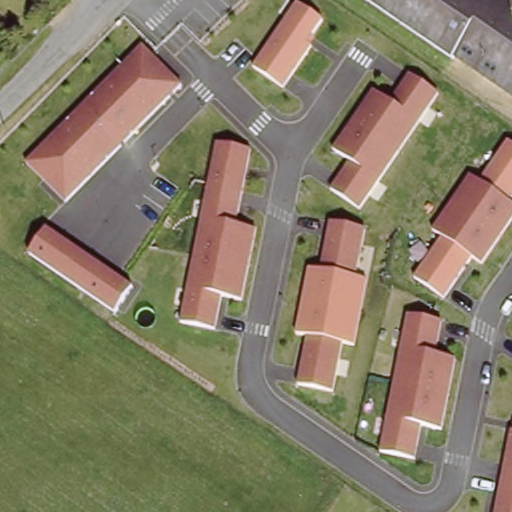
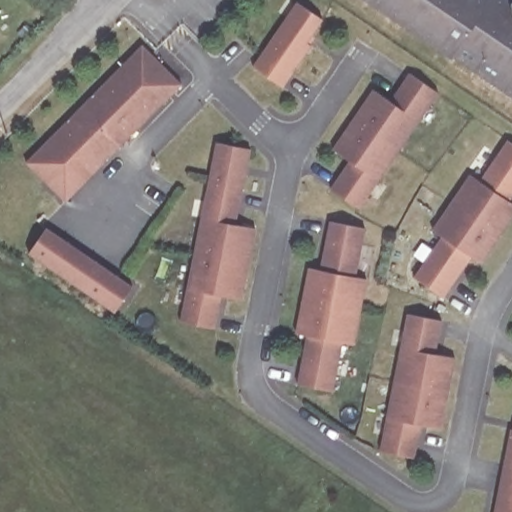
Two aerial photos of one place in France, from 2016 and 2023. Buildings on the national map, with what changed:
unchanged [(459,57),(377,0),(512,0),(512,90),(461,54),(459,57)]
unchanged [(296,2),(325,21),(282,87),(253,66),(296,2)]
unchanged [(183,86),(65,202),(28,165),(143,46),(183,86)]
unchanged [(438,92),(361,209),(331,190),(350,160),(334,149),(375,91),(389,101),(408,74),(438,92)]
unchanged [(512,143),(512,202),(512,203),(512,222),(482,265),(473,258),(444,298),(414,278),(442,237),(433,230),(472,177),(483,182),(509,141),(512,143)]
unchanged [(251,149),(238,225),(254,230),(242,301),(222,297),(216,331),(181,323),(214,145),(251,149)]
unchanged [(364,227),(357,279),(366,281),(355,347),(342,343),(334,388),(298,384),(306,336),(298,336),(311,270),(323,272),(329,224),(364,227)]
unchanged [(48,229),(133,287),(115,313),(29,256),(48,229)]
unchanged [(443,320),(437,356),(455,357),(442,430),(422,425),(416,458),(382,452),(406,315),(443,320)]
unchanged [(512,430),(512,512),(493,512),(507,430),(512,430)]

